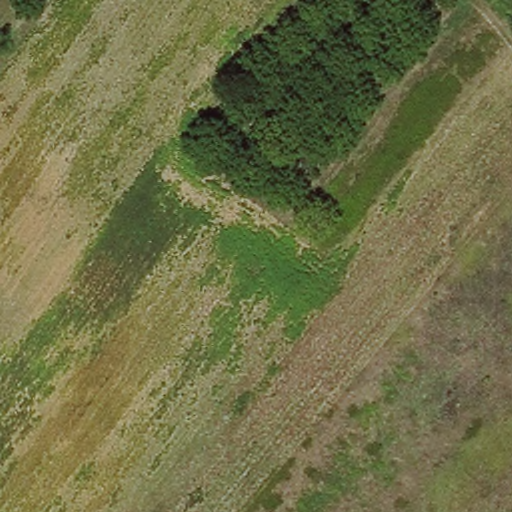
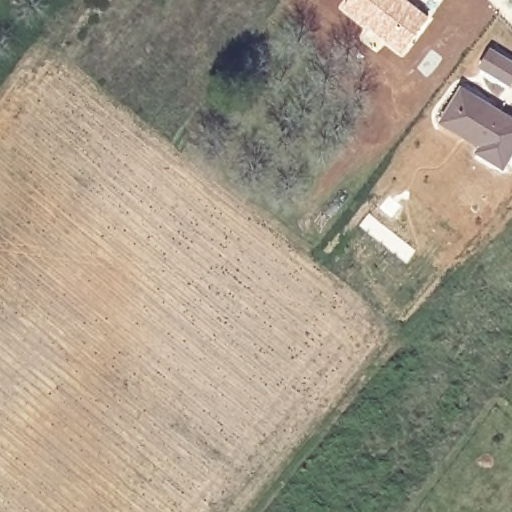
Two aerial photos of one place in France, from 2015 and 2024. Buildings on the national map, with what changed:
new [(408,0),(430,17),(401,56),(337,8),(344,0),(408,0)]
new [(489,46),(512,60),(512,81),(510,86),(477,66),(489,46)]
new [(461,84),(512,116),(512,156),(503,171),(472,154),(477,146),(437,122),(461,84)]

